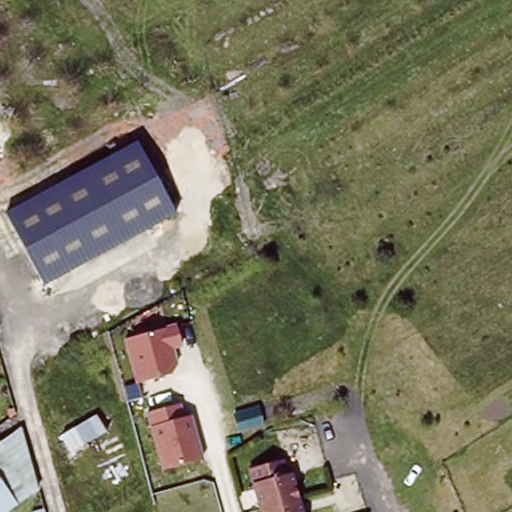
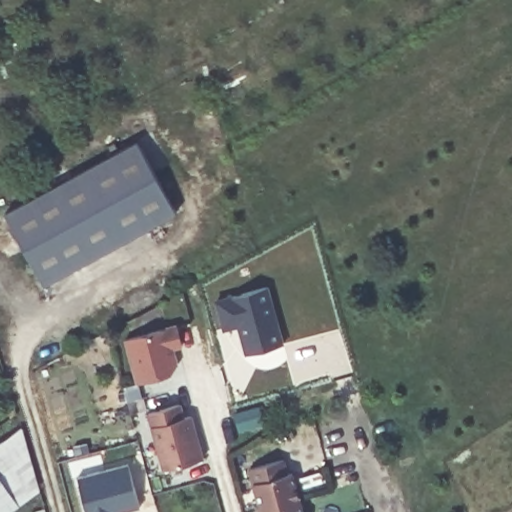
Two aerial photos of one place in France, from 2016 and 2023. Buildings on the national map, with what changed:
unchanged [(171,214),(40,286),(0,215),(131,143),(171,214)]
new [(215,299),(266,287),(282,344),(245,353),(238,326),(222,329),(215,299)]
unchanged [(179,374),(133,382),(123,339),(171,329),(179,374)]
unchanged [(184,415),(192,414),(203,458),(161,468),(146,411),(181,403),(184,415)]
unchanged [(47,483),(7,512),(0,512),(0,443),(11,435),(47,483)]
unchanged [(286,477),(293,512),(255,512),(248,484),(243,473),(279,463),(286,477)]
new [(141,508),(123,512),(86,512),(78,476),(130,465),(141,508)]

